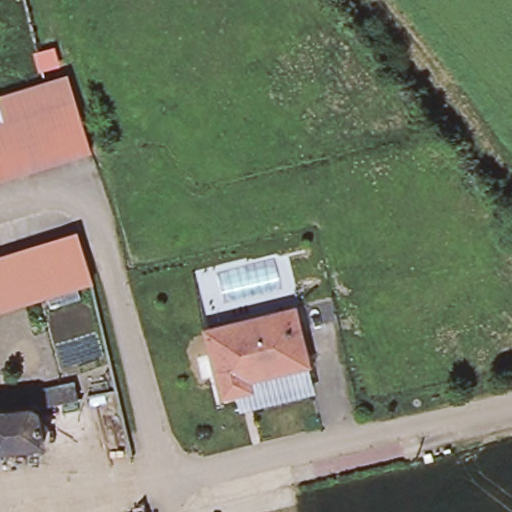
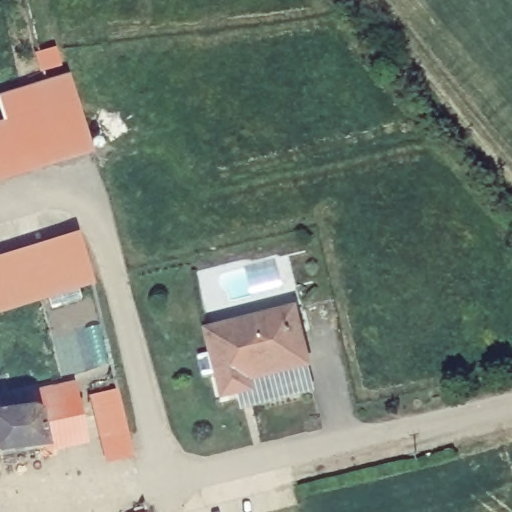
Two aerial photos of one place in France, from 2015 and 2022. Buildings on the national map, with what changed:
unchanged [(95,148),(0,176),(0,120),(10,117),(2,93),(72,72),(95,148)]
unchanged [(91,278),(0,305),(0,252),(75,228),(91,278)]
unchanged [(223,384),(207,323),(292,302),(305,354),(247,369),(249,380),(223,384)]
unchanged [(312,380),(252,395),(249,380),(247,369),(305,354),(312,380)]
unchanged [(73,380),(76,395),(34,404),(0,411),(0,395),(73,380)]
new [(89,397),(118,390),(134,456),(104,462),(89,397)]
new [(34,404),(76,395),(86,442),(47,453),(44,443),(34,404)]
unchanged [(34,404),(44,443),(0,450),(0,411),(34,404)]
unchanged [(147,512),(143,512),(147,511),(147,512)]

